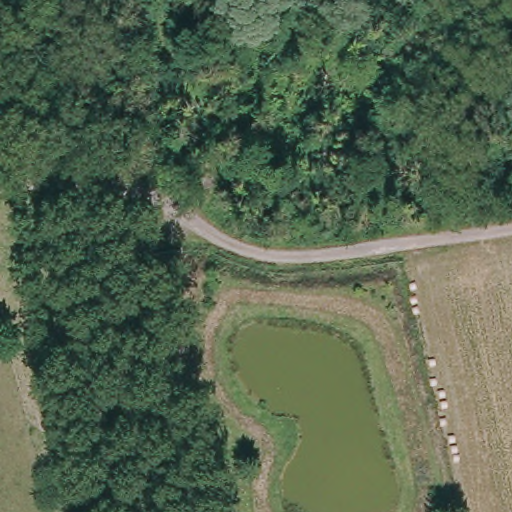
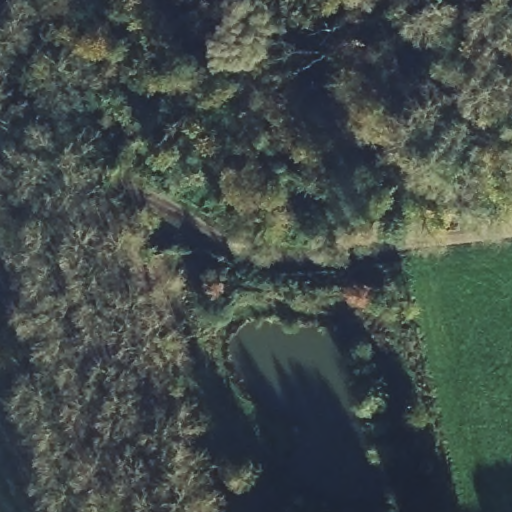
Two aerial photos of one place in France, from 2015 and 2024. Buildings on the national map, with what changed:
[]

